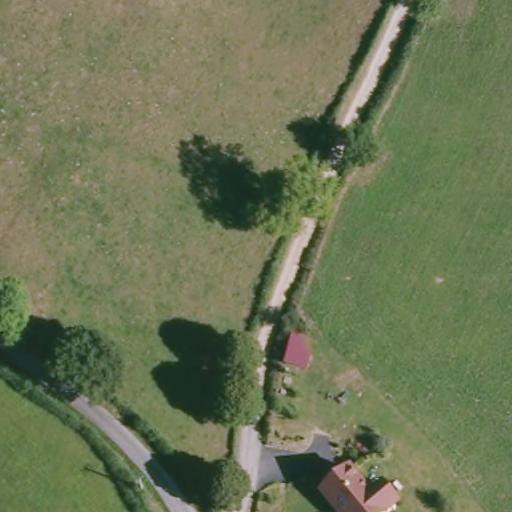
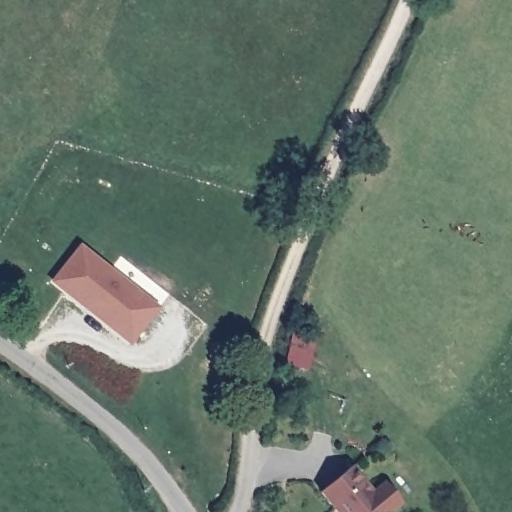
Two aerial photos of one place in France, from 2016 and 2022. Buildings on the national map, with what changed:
new [(132,346),(50,283),(81,245),(160,307),(132,346)]
unchanged [(374,491),(382,485),(397,505),(388,512),(343,512),(339,506),(337,507),(324,489),(354,465),(374,491)]

